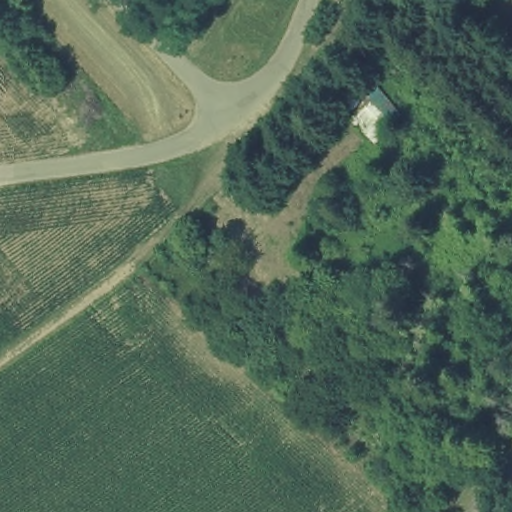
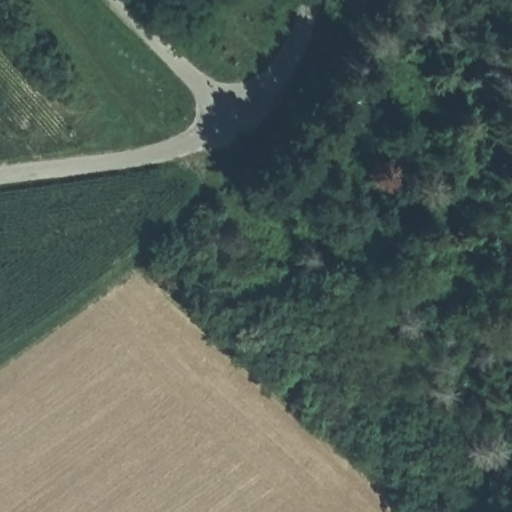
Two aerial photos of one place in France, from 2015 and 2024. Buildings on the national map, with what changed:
unchanged [(374,145),(344,110),(376,80),(406,116),(374,145)]

